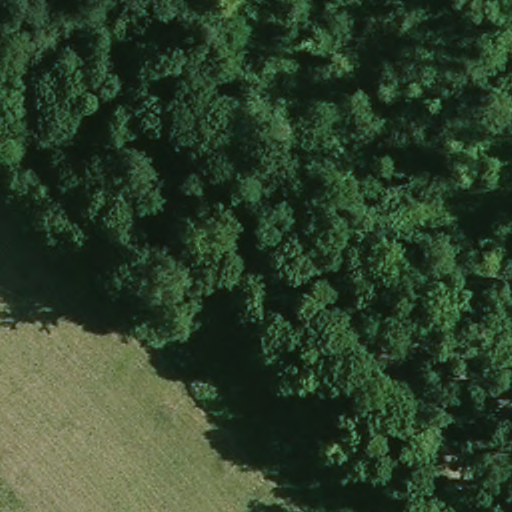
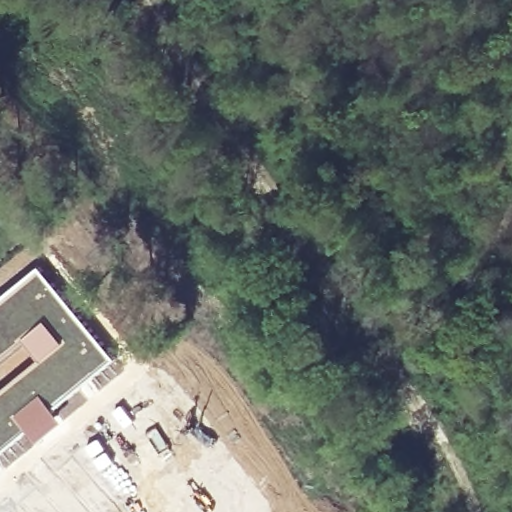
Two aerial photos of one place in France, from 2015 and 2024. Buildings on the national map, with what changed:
new [(39,265),(116,358),(56,410),(43,395),(17,416),(31,433),(0,456),(0,390),(42,361),(24,338),(0,360),(0,297),(39,265)]
new [(24,338),(42,361),(0,390),(0,360),(24,338)]
new [(43,395),(56,410),(65,421),(36,444),(30,438),(31,433),(17,416),(43,395)]

